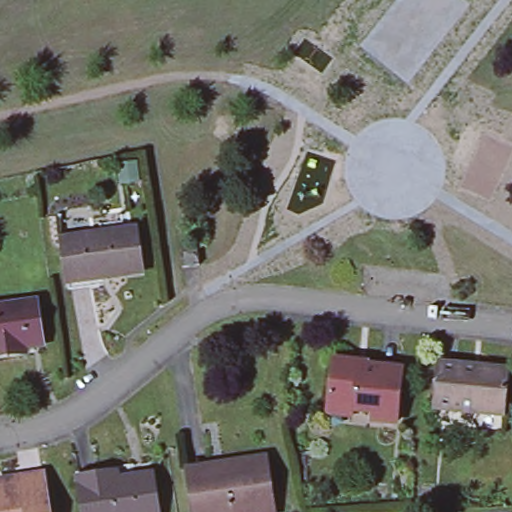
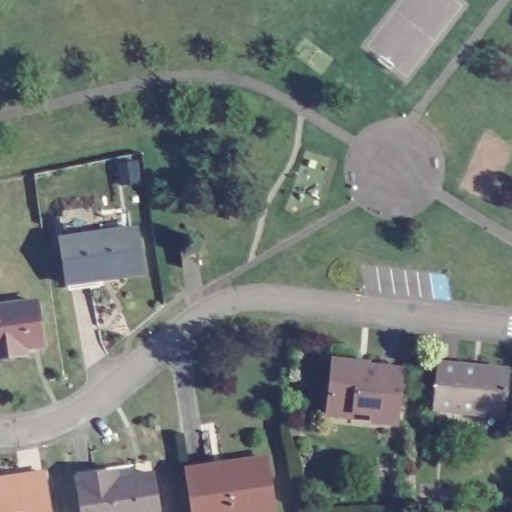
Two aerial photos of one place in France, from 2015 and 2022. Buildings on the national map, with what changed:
unchanged [(132,229),(139,273),(64,283),(57,240),(132,229)]
unchanged [(194,246),(197,264),(181,267),(178,249),(194,246)]
unchanged [(32,346),(0,351),(0,306),(38,302),(41,321),(44,339),(31,341),(32,346)]
unchanged [(354,363),(354,370),(365,371),(365,369),(399,372),(393,424),(369,421),(370,413),(324,408),(329,360),(354,363)]
unchanged [(505,370),(499,413),(432,406),(437,363),(505,370)]
unchanged [(265,512),(192,512),(186,468),(211,464),(262,455),(264,467),(271,511),(265,512)]
unchanged [(112,471),(113,478),(146,474),(153,512),(78,512),(73,477),(112,471)]
unchanged [(18,482),(18,476),(44,472),(50,512),(0,512),(0,485),(18,482)]

